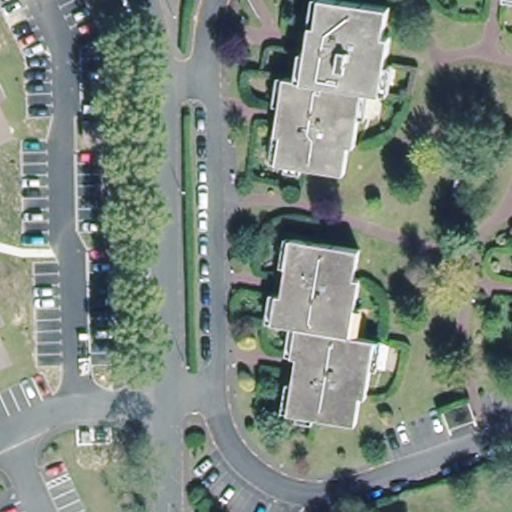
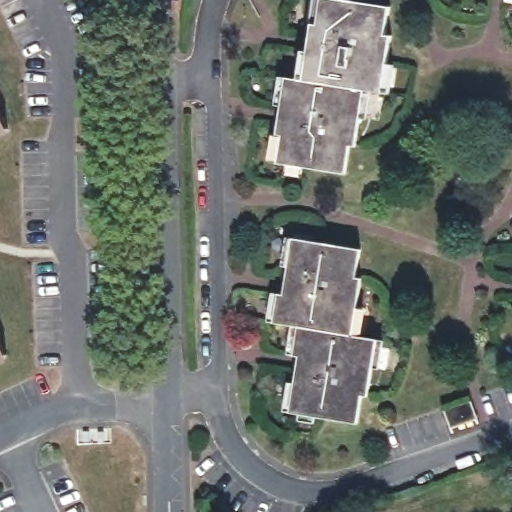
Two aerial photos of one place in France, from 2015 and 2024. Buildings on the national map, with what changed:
unchanged [(272,6),(269,0),(285,0),(272,6)]
unchanged [(307,77),(315,46),(320,47),(334,0),(339,0),(395,12),(390,38),(398,40),(384,96),(366,91),(353,146),(348,144),(340,171),(276,157),(288,105),(282,103),(287,74),(307,77)]
unchanged [(507,3),(508,0),(512,0),(512,5),(507,3)]
unchanged [(0,129),(0,107),(8,125),(0,129)]
unchanged [(110,110),(110,127),(92,129),(90,112),(110,110)]
unchanged [(286,282),(298,230),(365,246),(361,266),(366,268),(353,332),(383,341),(370,391),(366,390),(357,420),(292,405),(303,356),(296,354),(303,323),(270,315),(279,281),(286,282)]
unchanged [(0,354),(0,339),(5,351),(0,354)]
unchanged [(467,403),(473,420),(450,429),(446,410),(467,403)]

